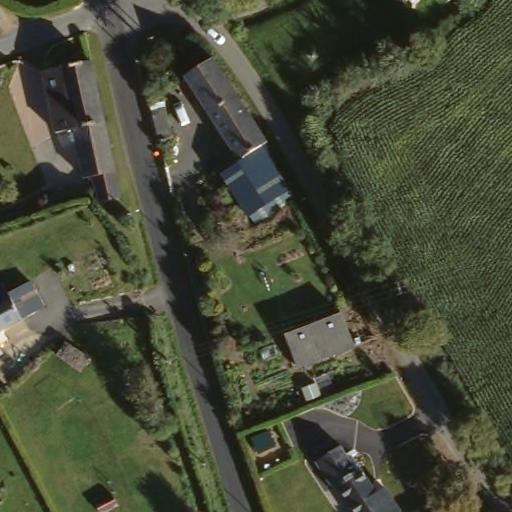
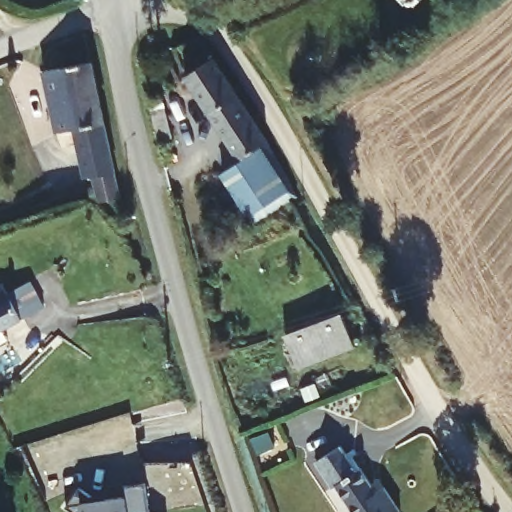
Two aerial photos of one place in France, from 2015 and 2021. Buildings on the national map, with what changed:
unchanged [(413,11),(404,0),(427,0),(413,11)]
unchanged [(443,4),(439,0),(447,0),(443,4)]
unchanged [(254,151),(238,163),(176,82),(201,61),(263,145),(254,151)]
unchanged [(108,177),(86,183),(75,131),(54,135),(41,71),(87,64),(108,177)]
unchanged [(161,111),(168,136),(151,141),(145,115),(161,111)]
unchanged [(253,220),(221,175),(238,163),(254,151),(284,196),(253,220)]
unchanged [(3,297),(29,283),(42,317),(23,325),(0,336),(0,291),(3,297)]
unchanged [(353,353),(294,375),(278,335),(338,314),(353,353)]
unchanged [(347,512),(336,494),(332,496),(313,465),(333,452),(369,495),(378,490),(393,512),(347,512)]
new [(81,490),(94,500),(125,495),(123,488),(144,485),(149,512),(72,512),(67,509),(81,490)]

